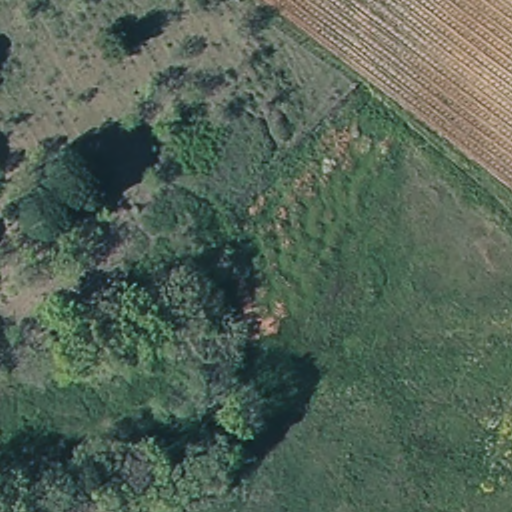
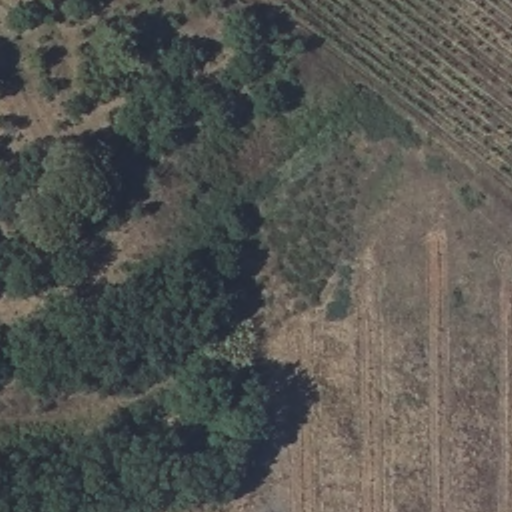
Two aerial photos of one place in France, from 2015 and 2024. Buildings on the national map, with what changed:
unchanged [(228,317),(209,321),(207,307),(226,303),(228,317)]

